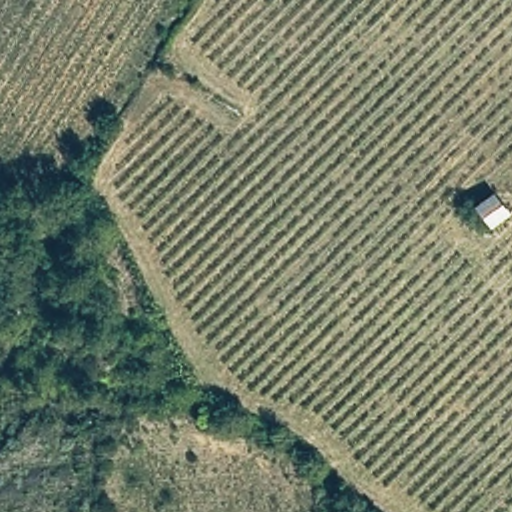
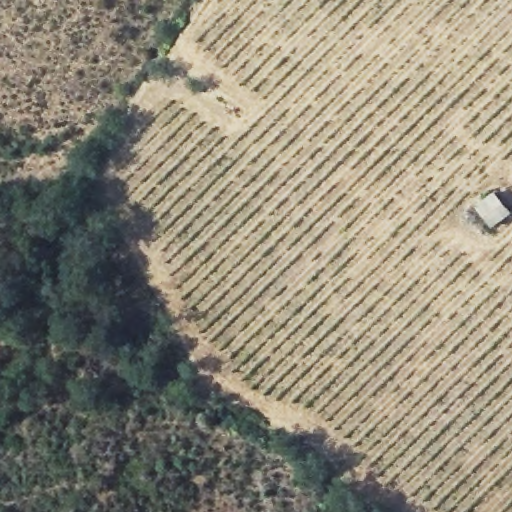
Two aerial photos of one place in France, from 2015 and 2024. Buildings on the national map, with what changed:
unchanged [(491,195),(506,216),(488,231),(472,208),(491,195)]

